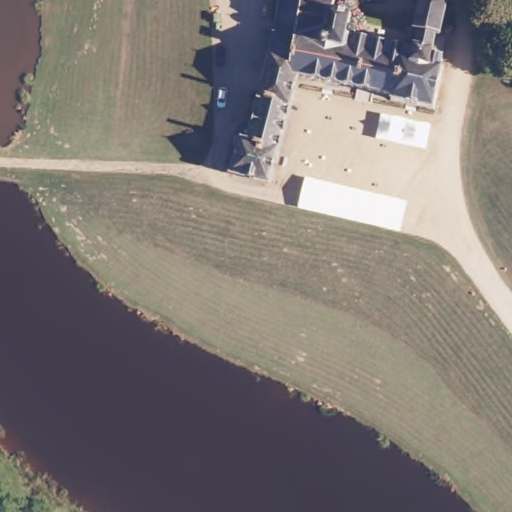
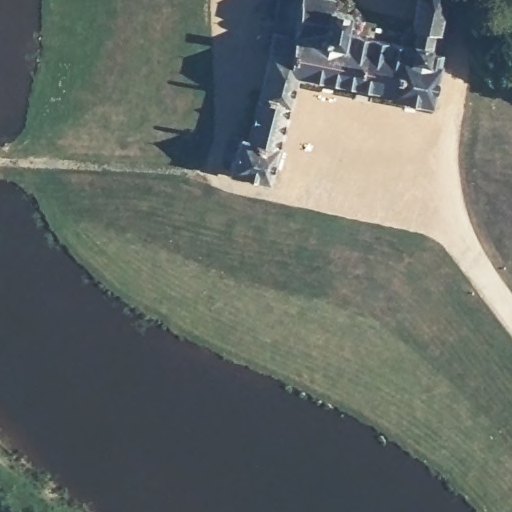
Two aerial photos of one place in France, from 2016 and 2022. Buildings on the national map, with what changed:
unchanged [(231,130),(244,132),(264,57),(265,47),(272,0),(328,0),(328,5),(346,7),(344,18),(351,29),(409,42),(412,27),(430,32),(428,50),(434,52),(436,61),(438,61),(432,105),(383,96),(383,91),(295,74),(264,182),(219,166),(230,149),(231,130)]
unchanged [(414,0),(440,0),(436,32),(430,32),(412,27),(410,23),(414,0)]

